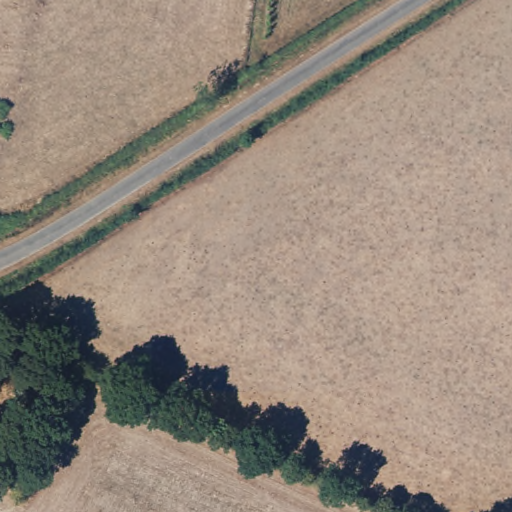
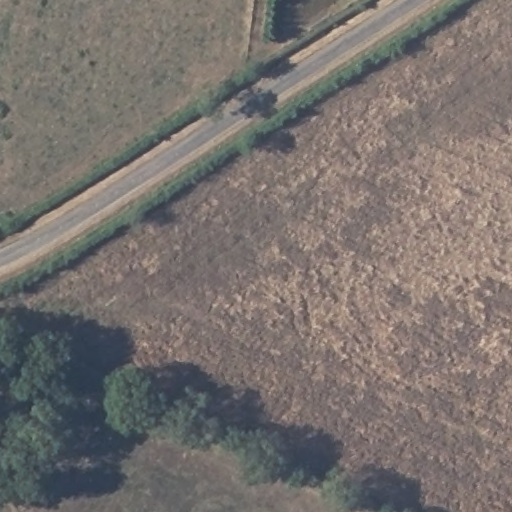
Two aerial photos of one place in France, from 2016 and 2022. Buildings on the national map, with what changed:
[]

